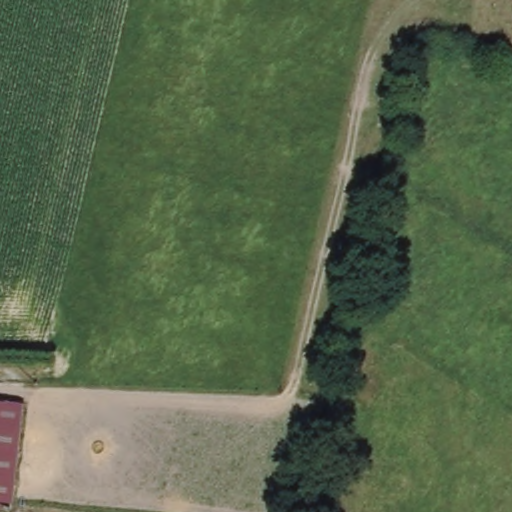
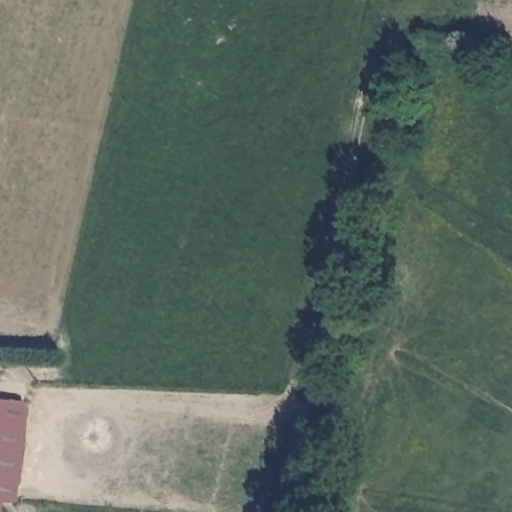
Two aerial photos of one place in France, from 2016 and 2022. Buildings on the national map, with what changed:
unchanged [(28,407),(13,503),(0,501),(0,401),(28,407)]

